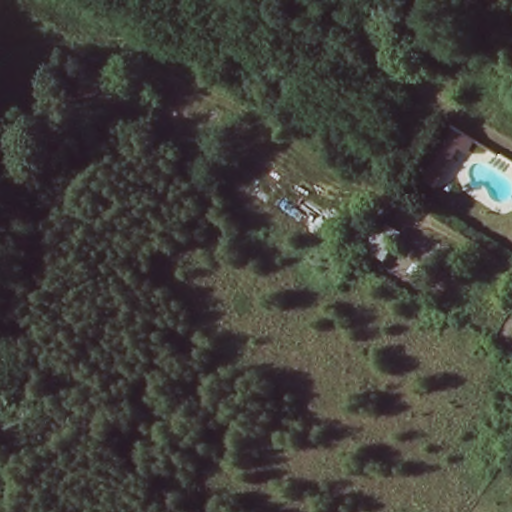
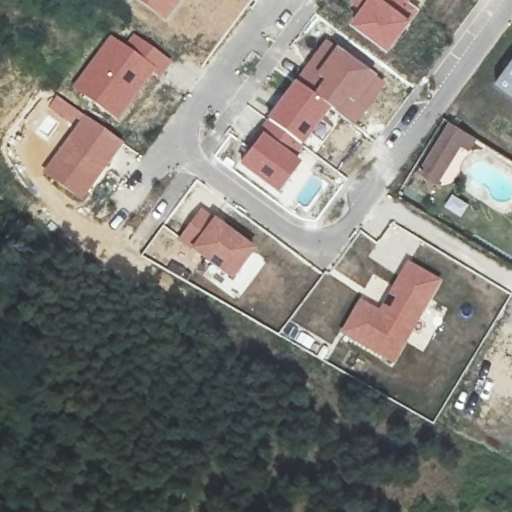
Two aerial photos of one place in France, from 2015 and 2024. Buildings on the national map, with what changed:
new [(135,0),(180,0),(164,21),(135,0)]
new [(411,0),(410,0),(421,9),(389,52),(348,23),(357,10),(347,3),(349,0),(411,0)]
new [(133,32),(172,61),(159,79),(152,74),(117,120),(70,86),(110,34),(124,45),(133,32)]
new [(324,37),(385,84),(354,127),(330,110),(295,156),(262,131),(258,127),(324,37)]
new [(512,98),(493,84),(512,58),(512,98)]
new [(73,126),(46,107),(57,95),(123,144),(80,202),(41,172),(73,126)]
unchanged [(469,139),(443,188),(416,169),(444,122),(469,139)]
new [(262,131),(295,156),(301,161),(277,194),(237,165),(262,131)]
new [(200,207),(255,248),(232,281),(175,241),(200,207)]
new [(359,296),(377,307),(405,259),(442,280),(392,366),(337,333),(359,296)]

